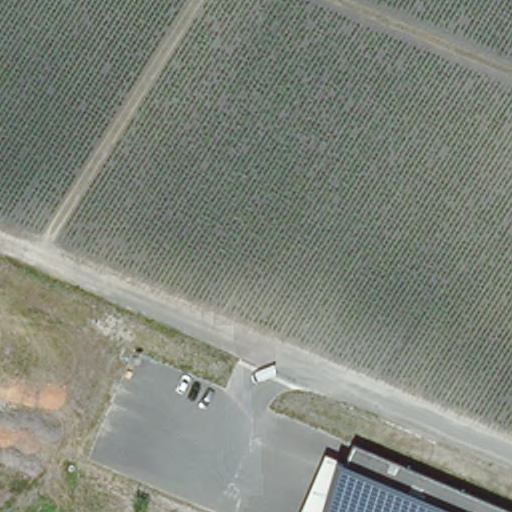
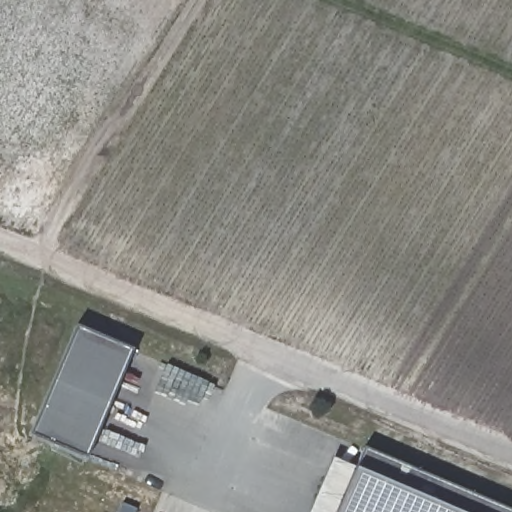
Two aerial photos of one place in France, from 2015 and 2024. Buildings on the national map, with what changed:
new [(85,459),(29,435),(76,328),(131,349),(85,459)]
unchanged [(512,512),(315,512),(337,457),(356,466),(367,449),(512,512)]

